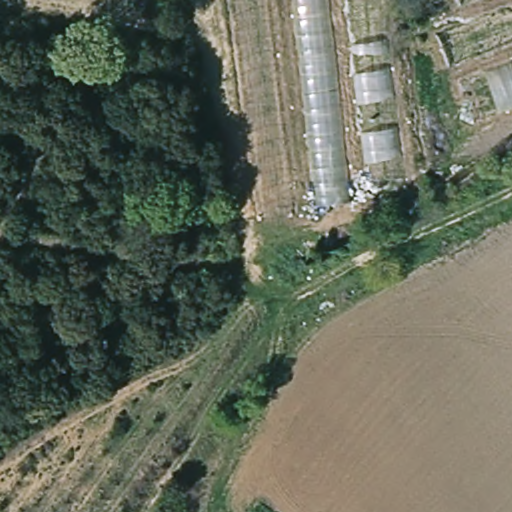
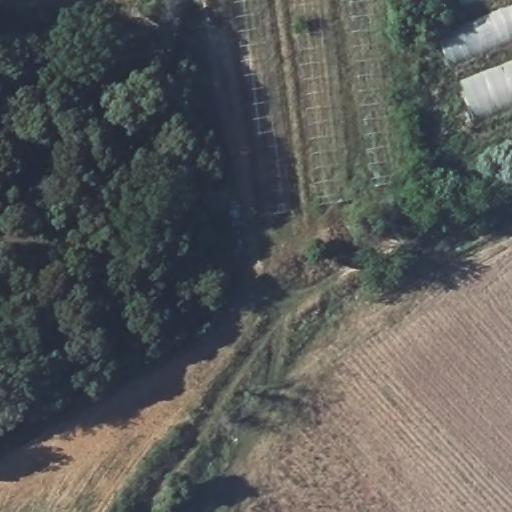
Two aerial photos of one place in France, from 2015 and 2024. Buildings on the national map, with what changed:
demolished [(378,0),(397,194),(312,207),(292,0),(378,0)]
unchanged [(467,13),(463,0),(512,0),(512,114),(476,130),(432,29),(467,13)]

